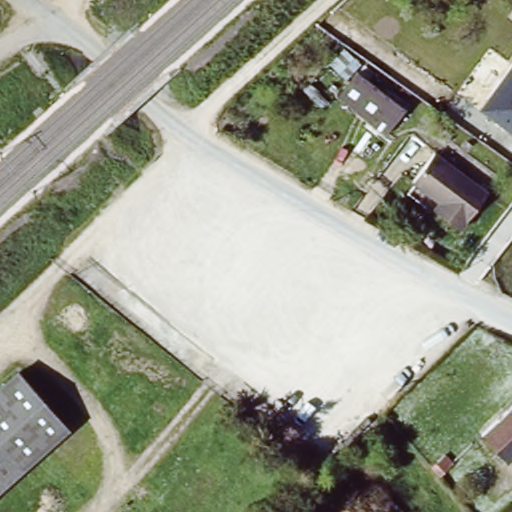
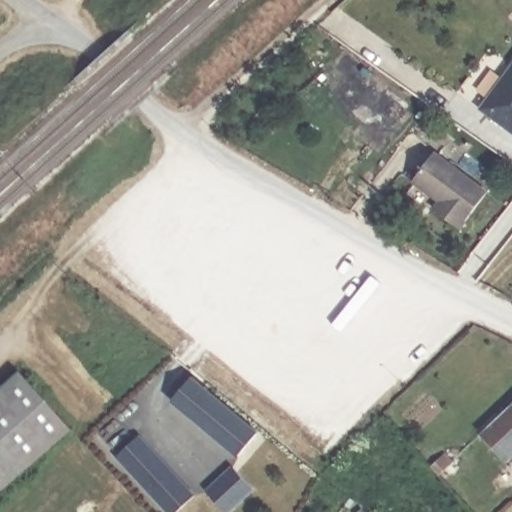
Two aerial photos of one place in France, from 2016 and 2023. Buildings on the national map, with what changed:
unchanged [(512,60),(512,133),(476,109),(512,60)]
unchanged [(411,105),(390,132),(337,100),(360,69),(411,105)]
unchanged [(443,193),(418,175),(438,150),(487,190),(459,226),(444,214),(435,206),(443,193)]
unchanged [(0,490),(0,393),(24,372),(72,425),(0,490)]
new [(189,376),(255,433),(235,455),(170,398),(189,376)]
demolished [(452,393),(415,427),(395,410),(433,376),(452,393)]
unchanged [(480,434),(512,405),(512,458),(510,461),(480,434)]
new [(191,499),(177,512),(164,512),(114,457),(135,438),(191,499)]
unchanged [(431,470),(422,460),(433,451),(442,460),(431,470)]
new [(251,490),(227,512),(224,512),(205,491),(231,468),(251,490)]

